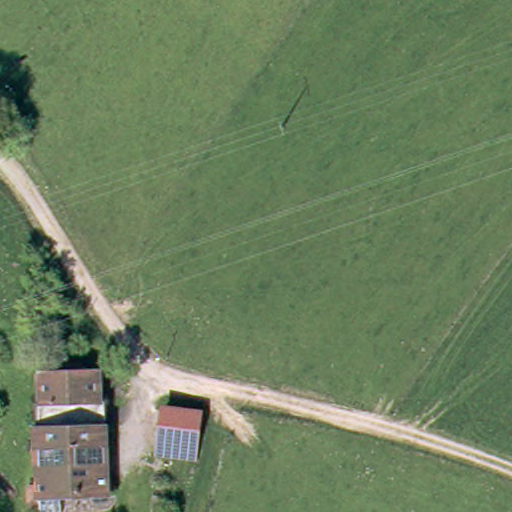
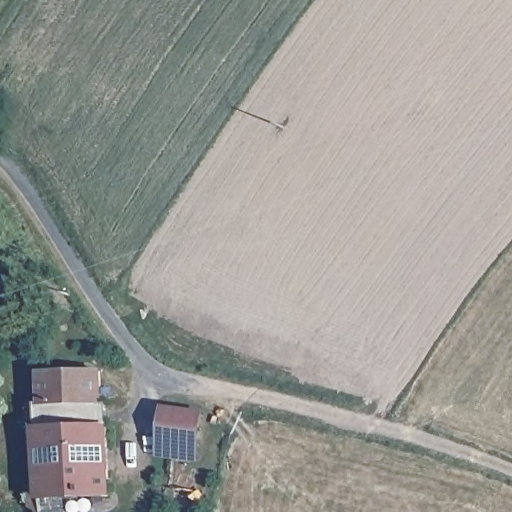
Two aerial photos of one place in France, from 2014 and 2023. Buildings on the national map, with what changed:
unchanged [(44,507),(44,503),(34,501),(33,478),(42,478),(40,396),(45,396),(44,366),(99,365),(100,394),(105,395),(109,486),(63,488),(64,507),(44,507)]
unchanged [(195,453),(163,450),(167,411),(200,415),(195,453)]

